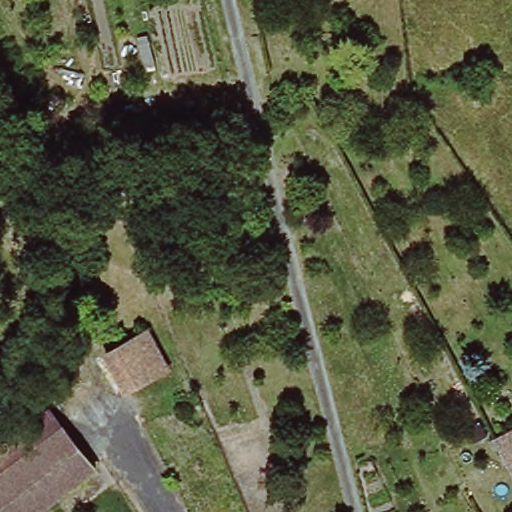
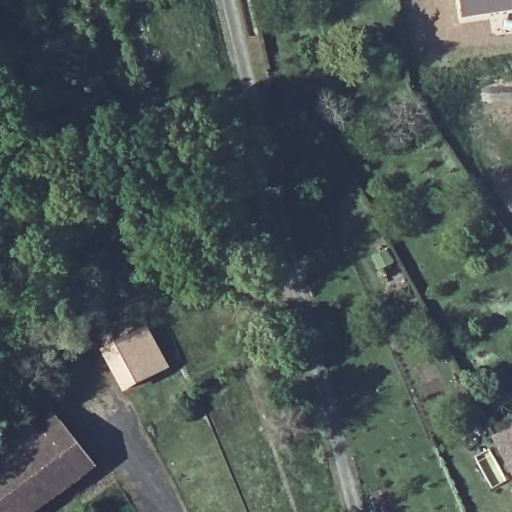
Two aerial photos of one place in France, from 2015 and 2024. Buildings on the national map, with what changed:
new [(463,18),(461,0),(512,0),(512,10),(463,18)]
unchanged [(164,369),(121,392),(102,356),(145,333),(164,369)]
unchanged [(89,469),(37,508),(0,453),(0,444),(44,410),(89,469)]
unchanged [(507,506),(492,477),(507,468),(503,462),(490,437),(512,424),(512,503),(507,506)]
unchanged [(32,512),(0,512),(0,453),(37,508),(32,512)]

